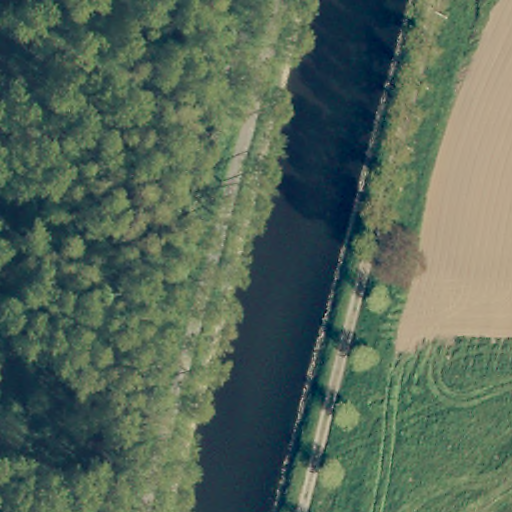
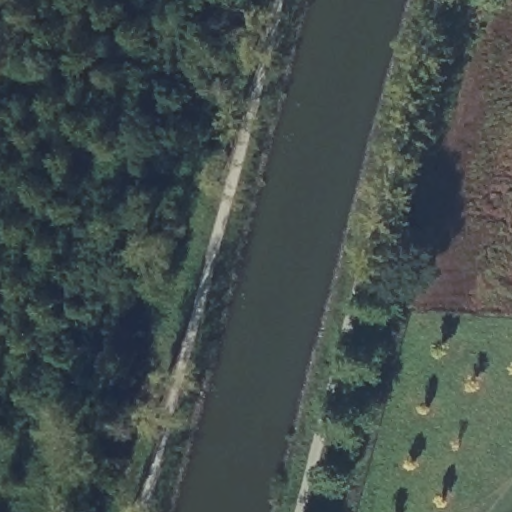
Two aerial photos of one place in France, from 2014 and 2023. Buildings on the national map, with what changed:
[]

